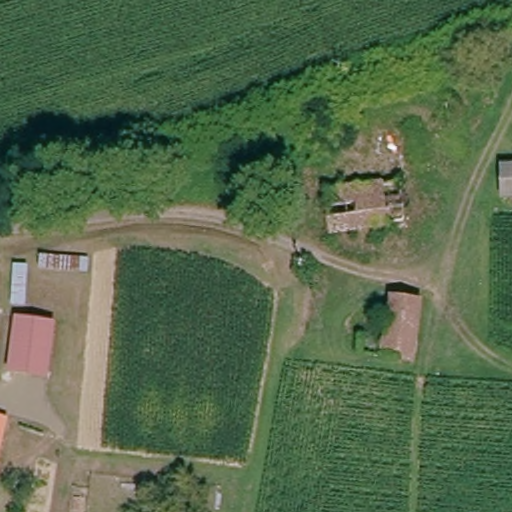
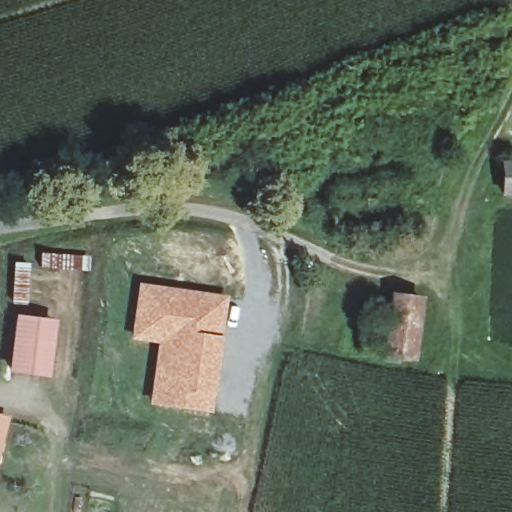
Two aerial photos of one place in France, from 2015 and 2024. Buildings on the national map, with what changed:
unchanged [(504,157),(512,157),(512,188),(503,188),(504,157)]
unchanged [(83,251),(82,264),(39,264),(38,251),(83,251)]
unchanged [(24,260),(23,297),(11,296),(12,260),(24,260)]
new [(137,281),(227,295),(210,413),(147,405),(155,343),(129,339),(137,281)]
unchanged [(415,295),(409,354),(381,353),(384,325),(387,290),(415,295)]
unchanged [(50,318),(47,365),(13,362),(16,315),(50,318)]
unchanged [(6,418),(0,444),(0,417),(6,418)]

